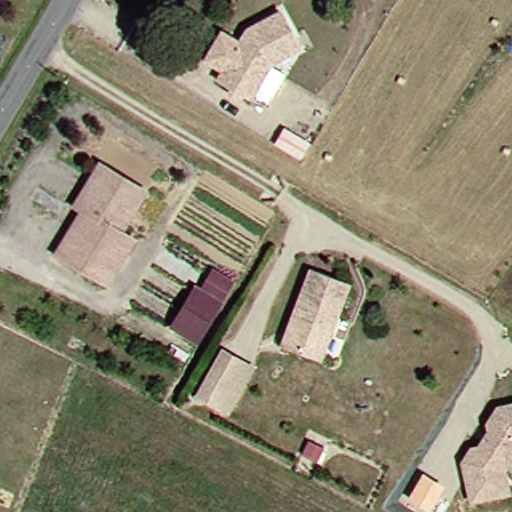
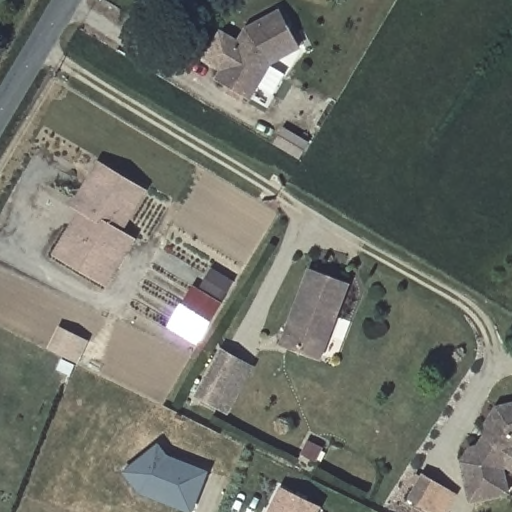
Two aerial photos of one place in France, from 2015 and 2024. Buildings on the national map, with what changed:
unchanged [(302,51),(272,64),(252,100),(212,78),(217,70),(201,61),(221,27),(239,38),(245,25),(280,9),(302,51)]
unchanged [(60,251),(86,209),(77,204),(104,160),(153,190),(127,232),(137,239),(109,282),(60,251)]
unchanged [(323,358),(282,341),(315,263),(357,280),(323,358)]
unchanged [(234,279),(196,344),(167,328),(193,284),(200,288),(211,268),(234,279)]
unchanged [(194,387),(212,358),(246,380),(229,408),(194,387)]
unchanged [(503,466),(509,490),(472,499),(466,458),(500,403),(512,401),(512,472),(503,466)]
new [(142,491),(125,471),(155,445),(167,458),(205,473),(191,510),(142,491)]
new [(407,499),(422,473),(446,485),(429,511),(407,499)]
new [(318,512),(267,512),(280,486),(321,508),(318,512)]

